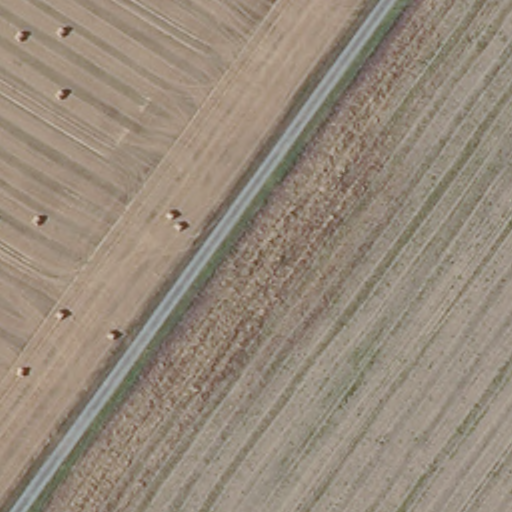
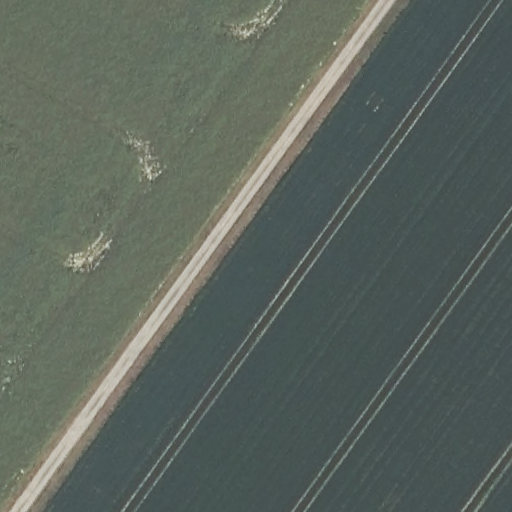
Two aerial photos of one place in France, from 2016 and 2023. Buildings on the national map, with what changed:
[]

